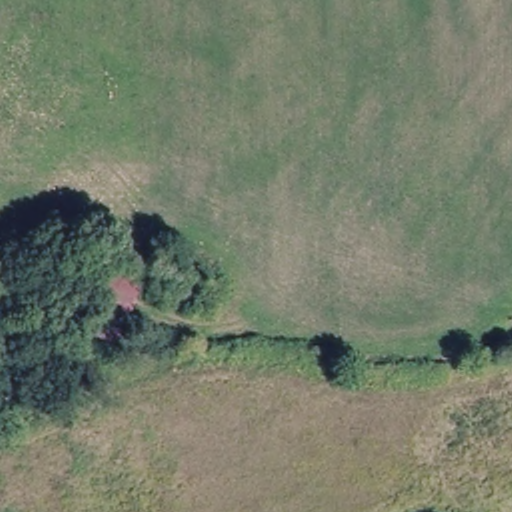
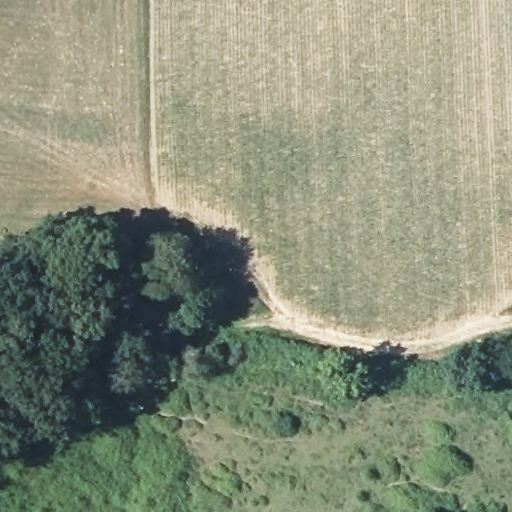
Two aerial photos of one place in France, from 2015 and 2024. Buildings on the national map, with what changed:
unchanged [(137,253),(130,270),(141,273),(122,328),(64,309),(81,253),(98,258),(102,244),(137,253)]

